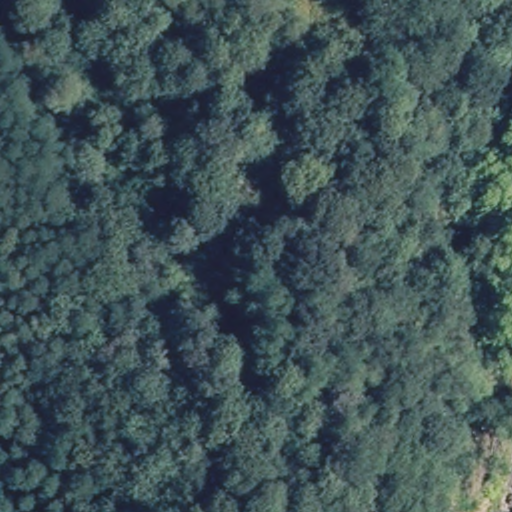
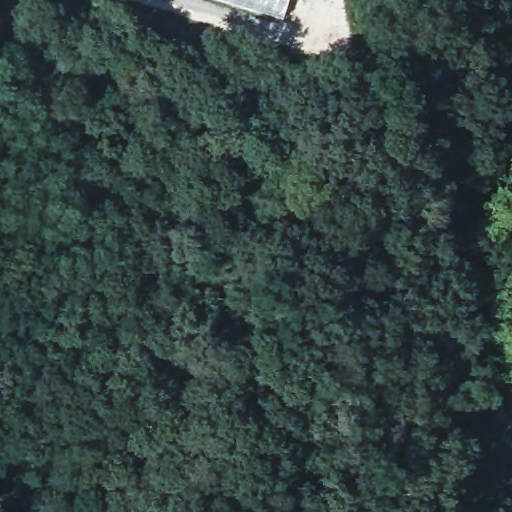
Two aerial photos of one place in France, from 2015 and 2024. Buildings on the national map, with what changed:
new [(282,19),(217,0),(287,0),(282,19)]

